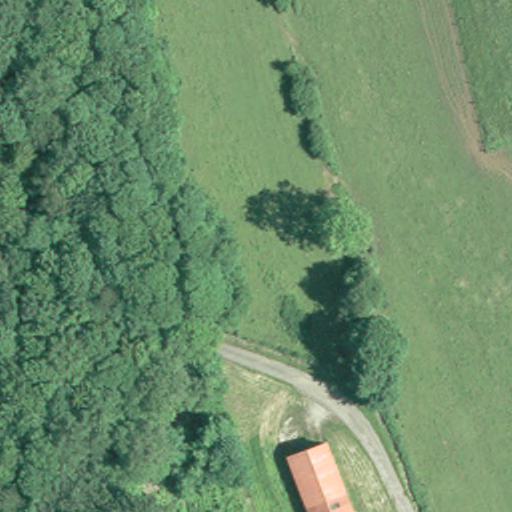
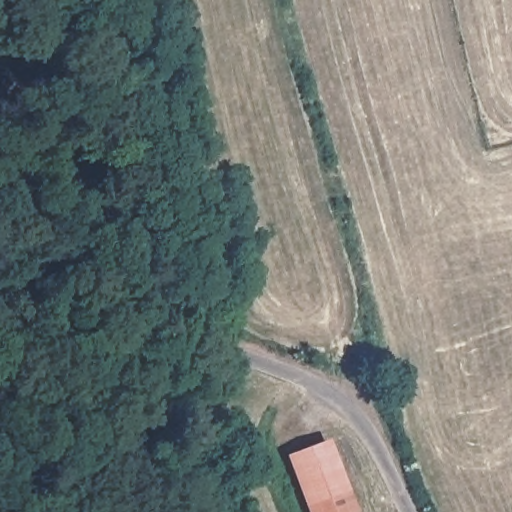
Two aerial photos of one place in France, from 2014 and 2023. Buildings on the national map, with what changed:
unchanged [(142,400),(155,396),(162,423),(150,425),(142,400)]
unchanged [(327,440),(356,510),(351,512),(314,512),(290,455),(327,440)]

